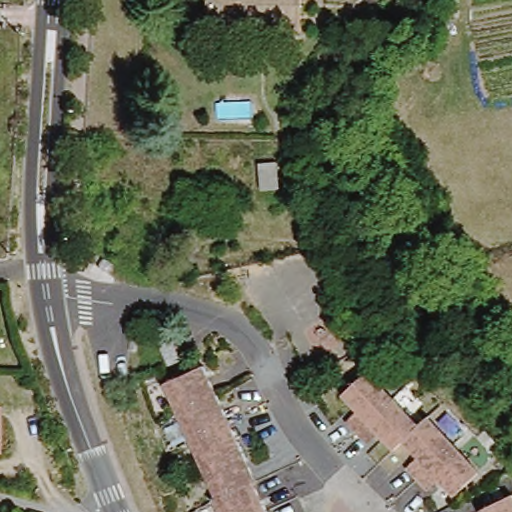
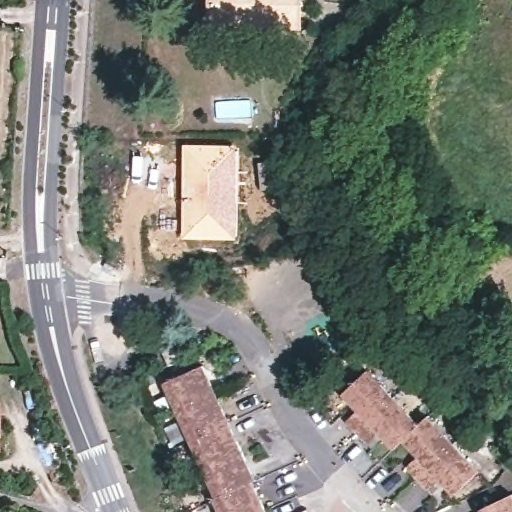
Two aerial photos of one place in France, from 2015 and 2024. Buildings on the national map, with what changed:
unchanged [(298,24),(210,24),(210,0),(298,0),(298,24)]
new [(182,144),(239,146),(238,240),(181,239),(182,144)]
unchanged [(289,182),(251,183),(251,154),(286,153),(289,182)]
unchanged [(199,364),(257,478),(253,481),(267,512),(218,512),(213,501),(217,499),(166,392),(161,382),(199,364)]
unchanged [(391,448),(377,433),(366,443),(345,420),(356,412),(341,396),(369,371),(419,424),(427,418),(476,473),(449,497),(434,480),(423,489),(404,468),(416,459),(399,442),(391,448)]
unchanged [(512,499),(512,512),(479,512),(512,498),(512,499)]

